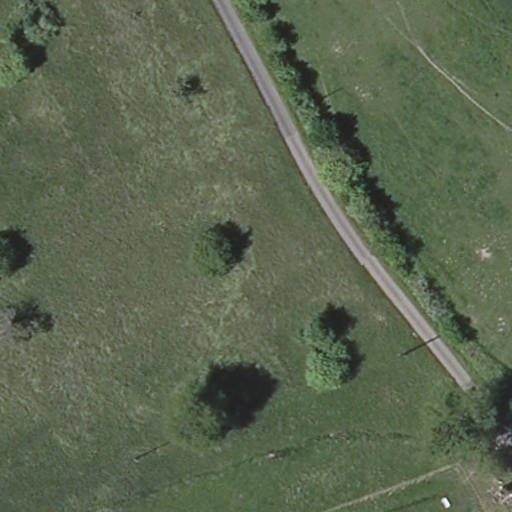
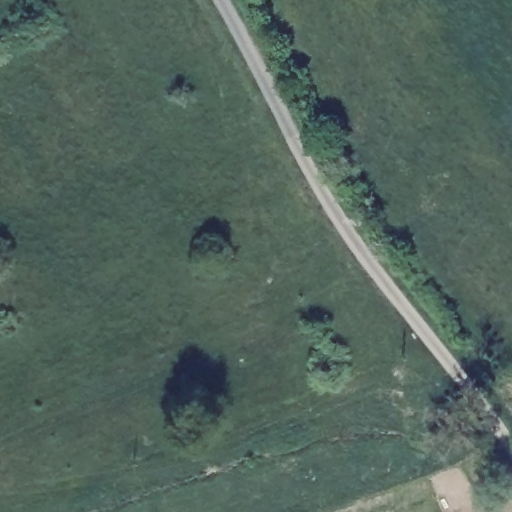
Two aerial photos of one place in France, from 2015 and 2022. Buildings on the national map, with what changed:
[]

